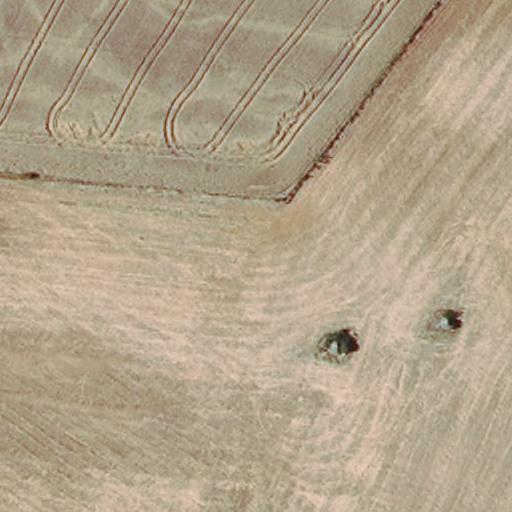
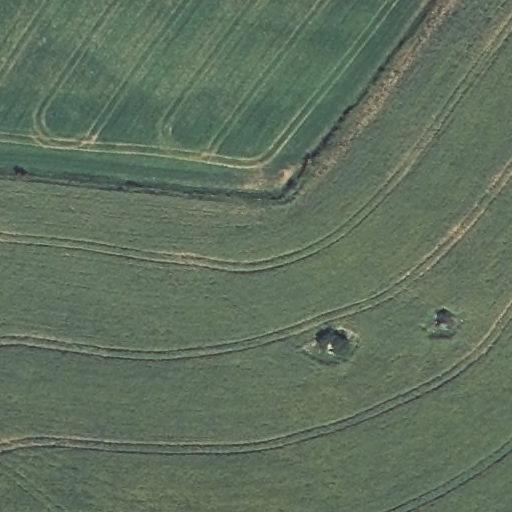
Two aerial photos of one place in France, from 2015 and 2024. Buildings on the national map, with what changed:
unchanged [(454,317),(454,325),(451,331),(443,331),(439,326),(439,319),(446,313),(454,317)]
unchanged [(331,342),(335,340),(340,341),(344,345),(346,349),(344,354),(341,357),(328,355),(326,350),(327,345),(331,342)]

